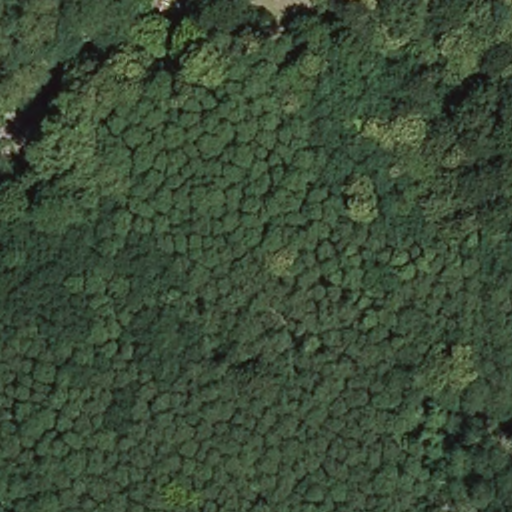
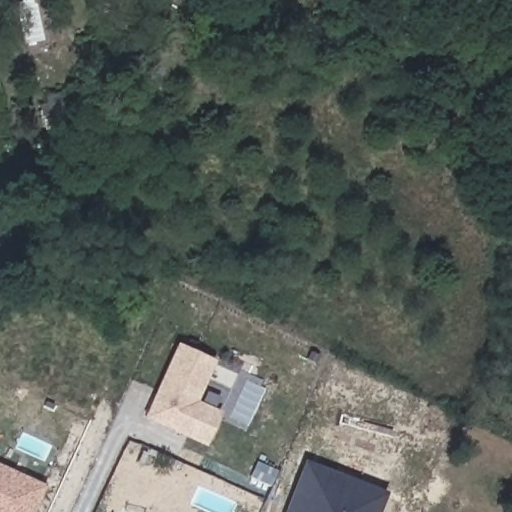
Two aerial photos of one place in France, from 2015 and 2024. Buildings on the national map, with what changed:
new [(194,399),(217,409),(204,441),(147,415),(175,352),(208,367),(194,399)]
new [(376,512),(281,512),(302,458),(385,491),(376,512)]
new [(0,465),(46,485),(33,512),(0,512),(0,465)]

